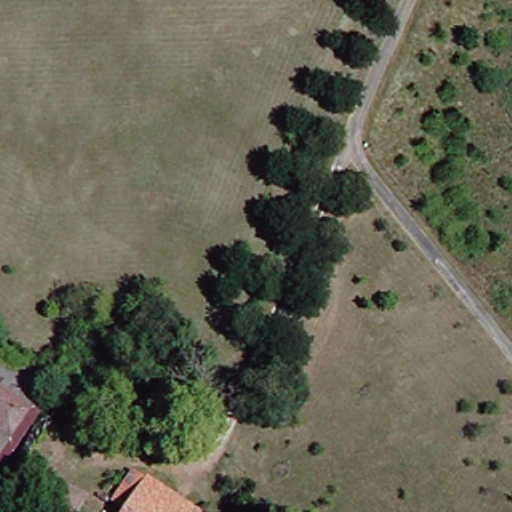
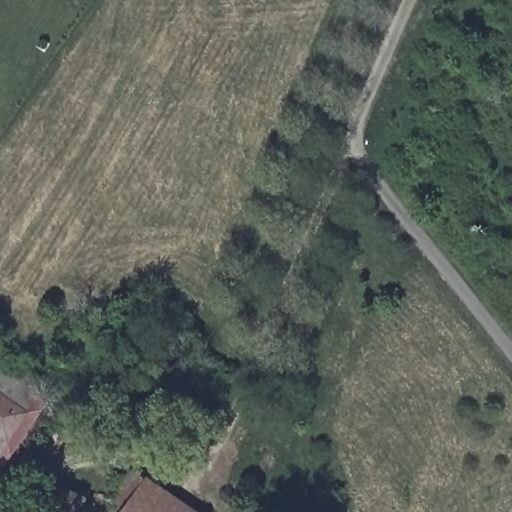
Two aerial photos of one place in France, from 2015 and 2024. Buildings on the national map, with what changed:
unchanged [(39,393),(0,450),(0,348),(47,380),(39,393)]
unchanged [(49,400),(0,470),(0,450),(39,393),(49,400)]
unchanged [(134,470),(197,512),(124,512),(127,507),(114,498),(134,470)]
unchanged [(70,512),(49,501),(61,480),(87,493),(77,512),(70,512)]

